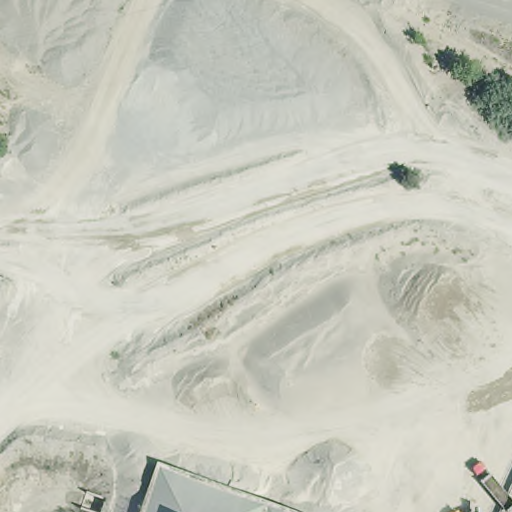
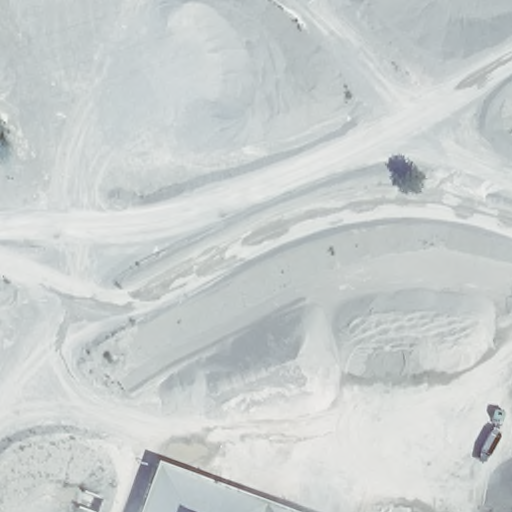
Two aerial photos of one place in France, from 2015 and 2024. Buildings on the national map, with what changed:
unchanged [(290,512),(138,512),(157,462),(290,512)]

